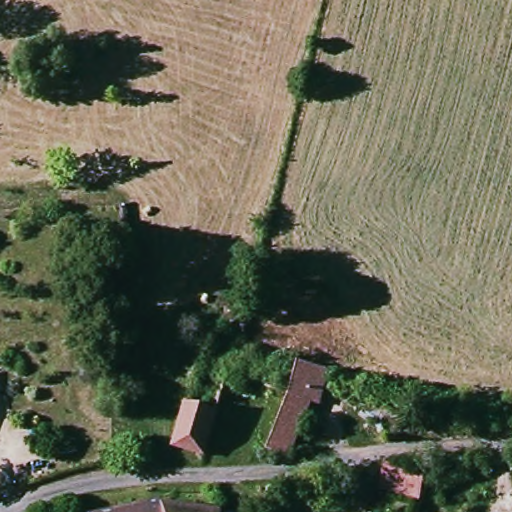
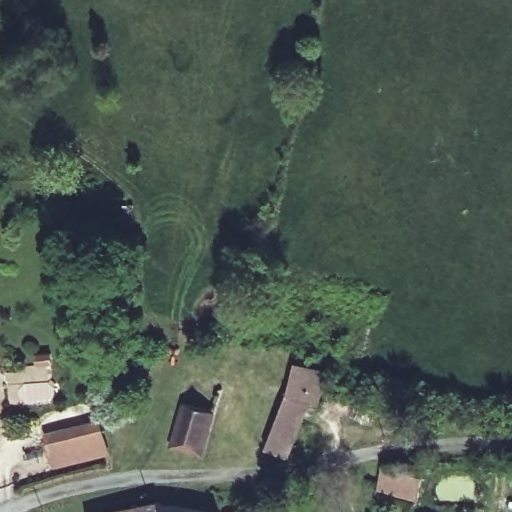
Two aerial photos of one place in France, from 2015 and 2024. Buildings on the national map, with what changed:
unchanged [(289,453),(266,446),(289,382),(311,390),(289,453)]
unchanged [(202,449),(172,441),(181,397),(213,407),(202,449)]
new [(45,433),(102,418),(111,454),(54,469),(45,433)]
unchanged [(420,496),(385,488),(390,464),(425,473),(420,496)]
unchanged [(156,500),(156,503),(215,509),(214,512),(86,512),(86,511),(156,500)]
unchanged [(242,512),(214,512),(215,509),(242,512)]

